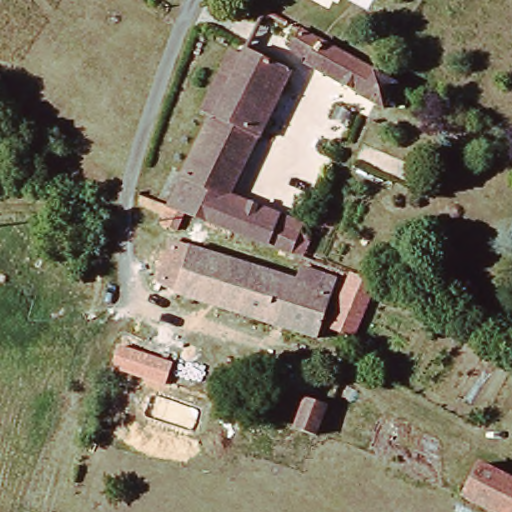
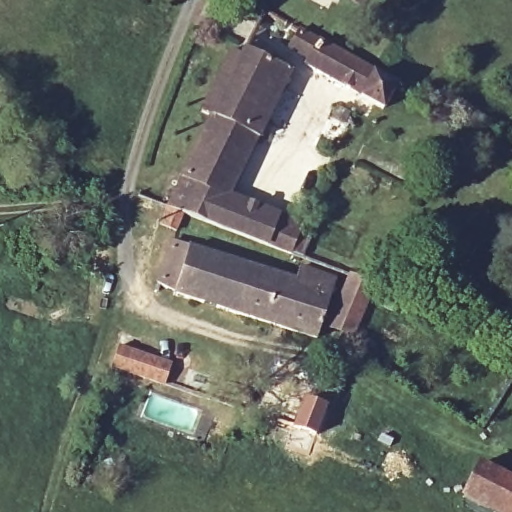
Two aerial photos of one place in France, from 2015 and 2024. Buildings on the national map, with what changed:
unchanged [(364,95),(305,66),(306,57),(299,54),(310,34),(376,70),(399,80),(387,106),(364,95)]
unchanged [(179,210),(221,119),(211,114),(240,51),(252,57),(257,47),(273,55),(271,61),(302,76),(269,145),(263,142),(242,195),(228,229),(196,216),(190,232),(173,225),(179,210)]
unchanged [(281,248),(228,229),(242,195),(315,222),(311,233),(300,256),(281,248)]
unchanged [(176,286),(174,293),(156,283),(169,240),(190,247),(176,286)]
unchanged [(191,244),(307,285),(310,275),(341,285),(345,270),(376,281),(357,336),(341,329),(355,297),(341,293),(323,340),(176,286),(191,244)]
unchanged [(173,363),(165,385),(110,367),(118,345),(173,363)]
unchanged [(329,432),(277,417),(282,403),(300,407),(302,395),(337,407),(329,432)]
unchanged [(498,512),(470,497),(489,462),(512,474),(512,512),(498,512)]

